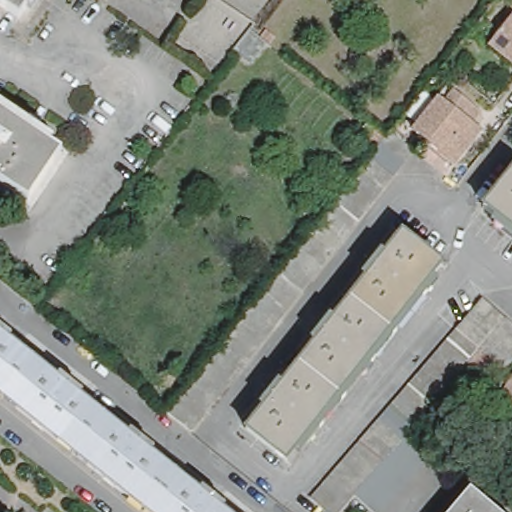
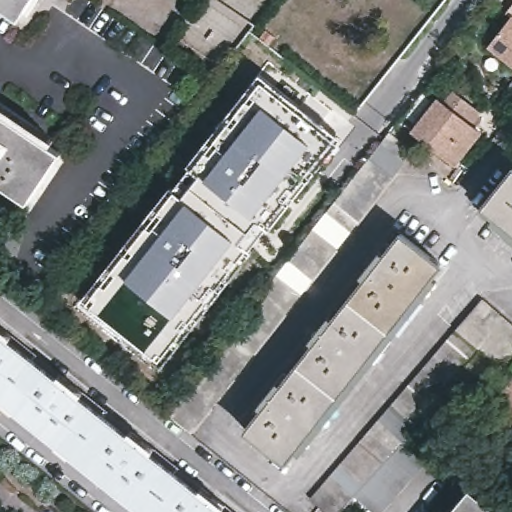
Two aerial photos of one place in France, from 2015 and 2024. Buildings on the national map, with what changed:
unchanged [(0,4),(0,0),(32,0),(20,18),(0,4)]
unchanged [(487,46),(507,19),(512,23),(512,65),(488,46),(487,46)]
new [(341,136),(162,368),(81,302),(260,74),(341,136)]
unchanged [(446,86),(480,113),(473,123),(484,133),(471,143),(455,165),(410,131),(436,96),(446,86)]
unchanged [(28,201),(0,181),(0,108),(62,151),(28,201)]
unchanged [(417,151),(196,434),(171,414),(394,132),(417,151)]
unchanged [(498,218),(486,208),(512,176),(512,238),(494,224),(498,218)]
unchanged [(285,467),(245,436),(255,423),(250,418),(281,378),(288,382),(306,358),(302,354),(333,312),(339,316),(358,293),(353,288),(384,249),(390,253),(401,239),(440,270),(285,467)]
unchanged [(476,349),(454,376),(405,433),(403,436),(352,495),(337,512),(326,512),(310,499),(481,300),(512,325),(512,362),(507,368),(476,349)]
unchanged [(0,415),(0,345),(210,512),(121,512),(0,415)]
unchanged [(512,378),(506,386),(484,372),(470,388),(454,376),(476,349),(507,368),(512,371),(512,378)]
unchanged [(512,402),(501,394),(506,386),(512,378),(512,402)]
unchanged [(428,456),(380,512),(373,512),(352,495),(403,436),(428,456)]
unchanged [(474,488),(502,512),(454,512),(474,488)]

